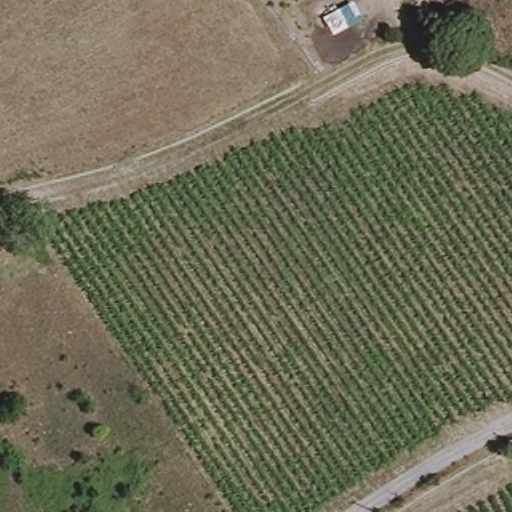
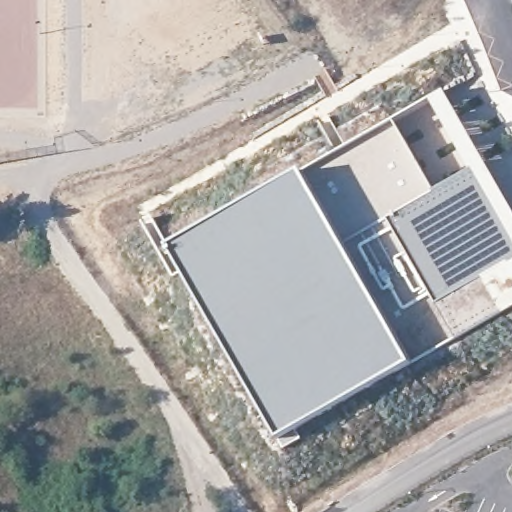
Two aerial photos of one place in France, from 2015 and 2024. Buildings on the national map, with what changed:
new [(307,177),(309,180),(449,95),(512,207),(512,317),(416,371),(284,445),(175,253),(307,177)]

